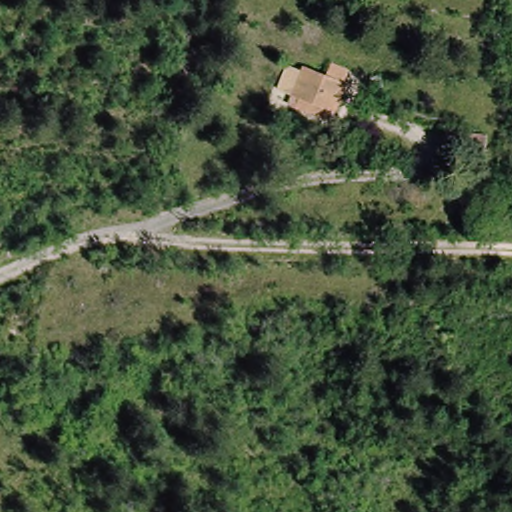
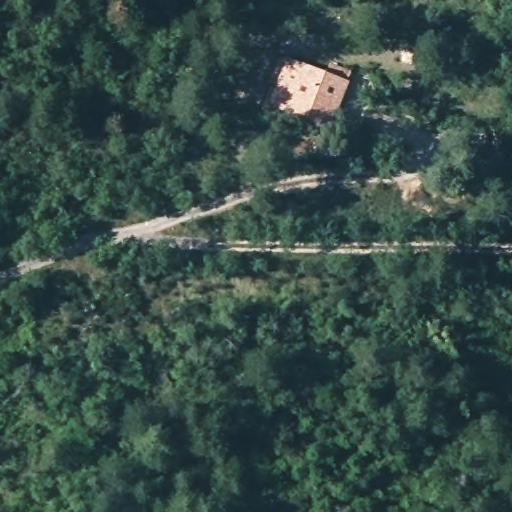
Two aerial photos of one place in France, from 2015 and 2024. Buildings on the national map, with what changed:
unchanged [(270,95),(275,87),(261,84),(269,60),(282,65),(287,59),(306,66),(311,59),(326,64),(323,71),(329,74),(317,103),(314,112),(270,95)]
unchanged [(476,163),(474,129),(493,128),(494,162),(476,163)]

